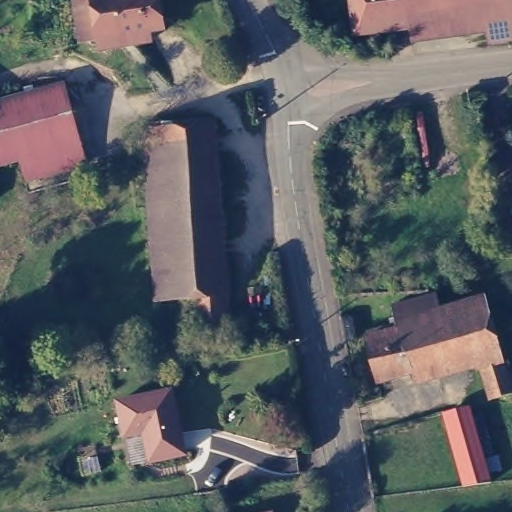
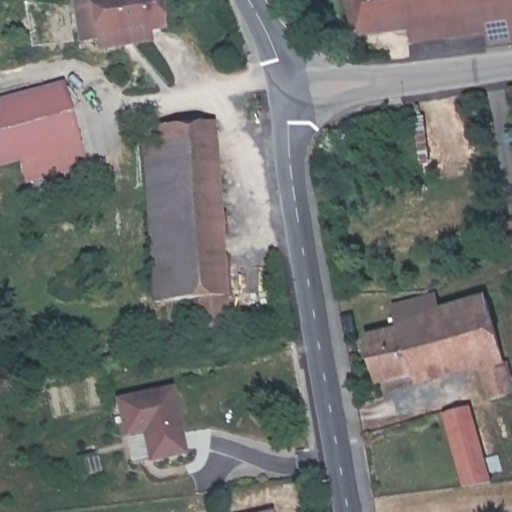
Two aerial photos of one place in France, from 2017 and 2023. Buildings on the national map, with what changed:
unchanged [(152,30),(152,42),(100,50),(97,39),(78,42),(71,0),(160,0),(166,28),(152,30)]
unchanged [(492,15),(470,16),(472,32),(450,33),(450,19),(357,29),(353,0),(512,0),(512,41),(493,43),(492,15)]
unchanged [(88,166),(30,181),(23,161),(0,167),(0,101),(71,83),(88,166)]
unchanged [(232,335),(205,335),(202,300),(161,302),(148,127),(218,124),(232,335)]
unchanged [(442,323),(490,310),(503,356),(477,363),(380,388),(367,341),(388,333),(385,320),(417,312),(433,307),(436,306),(437,310),(442,323)]
unchanged [(503,356),(512,391),(512,406),(490,412),(477,363),(503,356)]
unchanged [(136,469),(125,405),(176,397),(189,460),(136,469)]
unchanged [(492,488),(465,490),(443,414),(470,407),(493,488),(492,488)]

